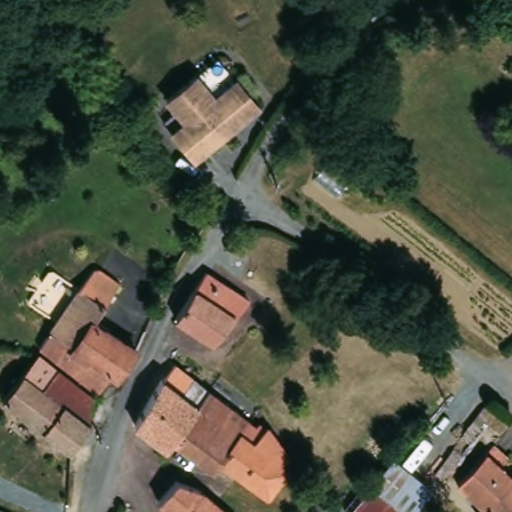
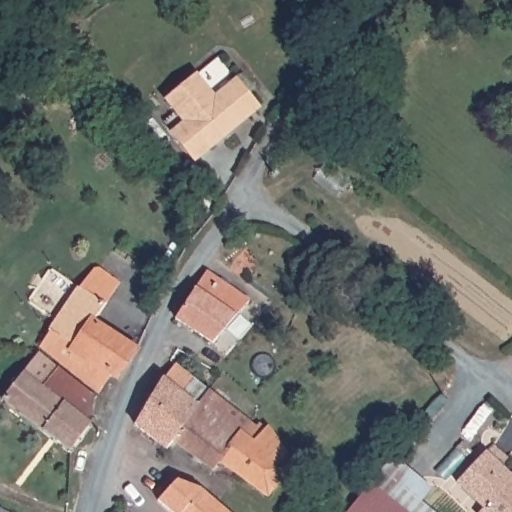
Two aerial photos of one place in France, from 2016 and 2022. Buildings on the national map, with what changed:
unchanged [(176,110),(167,99),(197,74),(216,98),(237,80),(260,109),(194,161),(172,133),(162,121),(176,110)]
unchanged [(95,265),(96,265),(101,264),(119,277),(122,280),(106,302),(95,317),(75,342),(59,329),(57,328),(53,324),(82,284),(95,265)]
unchanged [(206,268),(248,300),(238,311),(216,340),(177,314),(206,268)]
unchanged [(116,374),(112,371),(97,390),(43,349),(59,329),(75,342),(95,317),(136,347),(116,374)]
unchanged [(69,448),(2,397),(37,351),(59,367),(45,386),(87,419),(90,421),(69,448)]
unchanged [(95,394),(87,419),(45,386),(59,367),(94,394),(95,394)]
unchanged [(140,416),(167,371),(202,399),(177,434),(172,442),(140,416)]
unchanged [(247,424),(222,454),(224,456),(218,463),(177,434),(202,399),(212,384),(254,417),(247,424)]
unchanged [(261,434),(273,419),(295,449),(286,454),(294,461),(273,489),(224,456),(222,454),(247,424),(261,434)]
unchanged [(485,511),(457,486),(493,446),(508,459),(505,464),(512,470),(512,512),(484,512),(485,511)]
unchanged [(434,512),(402,512),(371,487),(383,471),(434,512)]
unchanged [(159,503),(177,483),(201,491),(203,492),(226,512),(169,512),(159,503)]
unchanged [(371,487),(402,512),(349,512),(371,487)]

